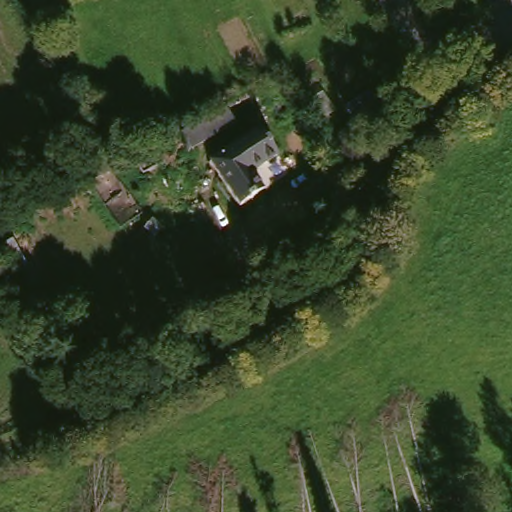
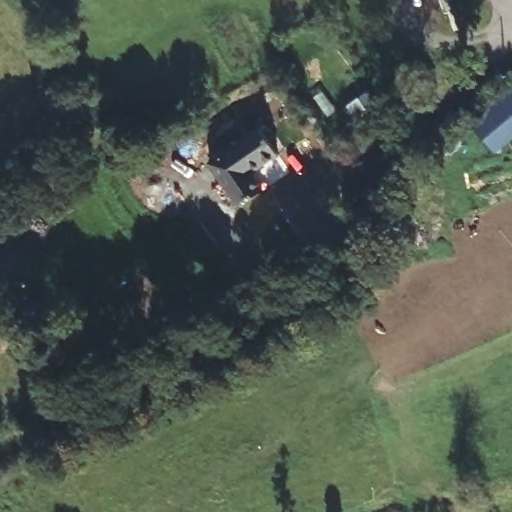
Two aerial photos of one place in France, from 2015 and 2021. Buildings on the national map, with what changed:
unchanged [(195,148),(187,135),(227,105),(237,119),(195,148)]
new [(485,140),(473,126),(495,107),(507,121),(512,127),(512,138),(495,152),(485,140)]
unchanged [(254,171),(267,189),(242,206),(211,163),(260,128),(278,153),(254,171)]

